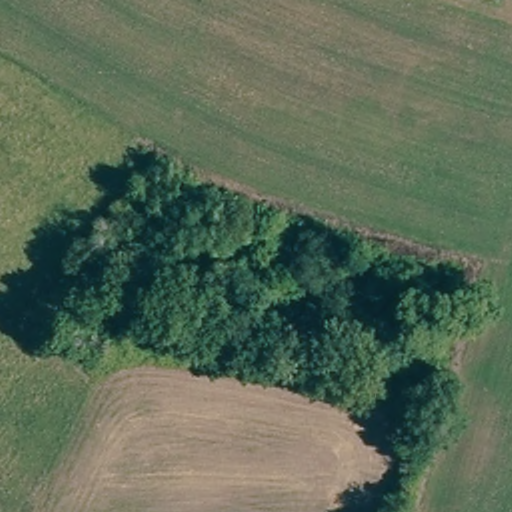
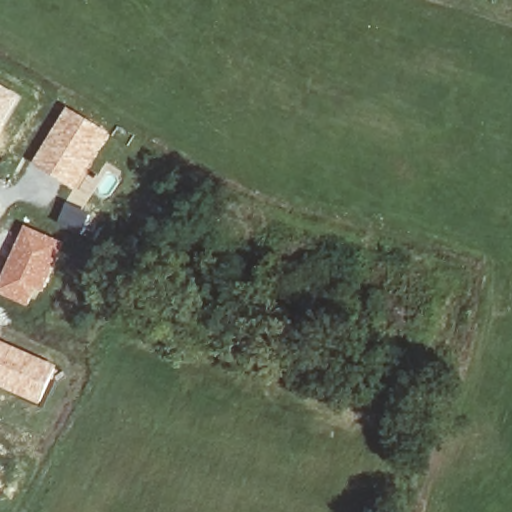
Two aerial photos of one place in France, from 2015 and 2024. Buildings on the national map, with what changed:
new [(0,136),(0,85),(22,97),(0,136)]
new [(111,134),(76,192),(34,165),(68,110),(111,134)]
new [(0,295),(0,286),(26,227),(66,245),(44,295),(36,292),(30,308),(0,295)]
new [(59,367),(41,406),(0,388),(0,342),(59,367)]

